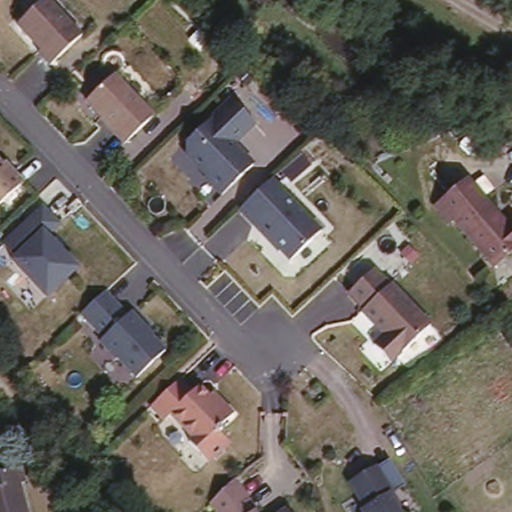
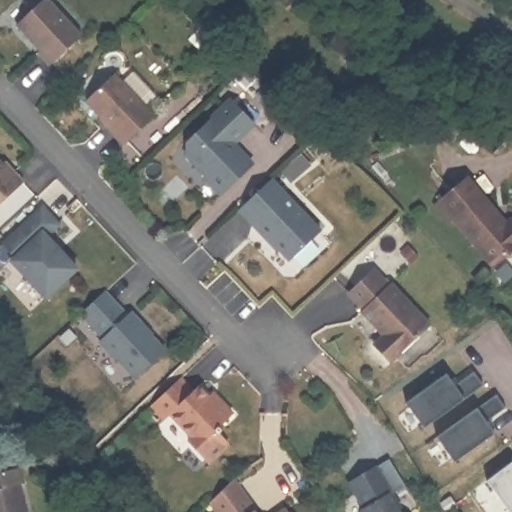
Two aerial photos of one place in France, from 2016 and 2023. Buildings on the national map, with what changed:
unchanged [(19,22),(43,0),(55,0),(85,33),(54,62),(41,49),(44,47),(19,22)]
unchanged [(99,115),(101,114),(85,97),(112,71),(153,114),(124,141),(99,115)]
unchanged [(253,162),(222,192),(203,174),(206,171),(185,150),(185,140),(230,95),(253,120),(232,141),(236,144),(239,148),(253,162)]
unchanged [(12,169),(23,181),(0,203),(0,161),(9,171),(12,169)]
unchanged [(454,221),(440,204),(471,177),(507,219),(512,215),(512,250),(497,263),(458,218),(454,221)]
unchanged [(271,178),(323,232),(291,261),(274,242),(272,244),(240,207),(271,178)]
unchanged [(46,206),(63,223),(51,234),(81,268),(50,298),(15,261),(17,259),(5,244),(46,206)]
unchanged [(376,268),(388,283),(392,281),(431,324),(390,361),(376,341),(386,334),(350,291),(376,268)]
unchanged [(105,289),(129,313),(132,310),(145,324),(144,326),(167,350),(138,378),(120,358),(118,359),(101,341),(104,338),(80,313),(105,289)]
new [(455,385),(475,370),(484,384),(424,427),(406,403),(447,373),(455,385)]
unchanged [(193,391),(198,386),(208,398),(212,394),(221,403),(232,414),(218,428),(221,430),(218,433),(227,442),(206,462),(187,442),(192,438),(171,414),(164,420),(151,406),(180,379),(193,391)]
new [(506,406),(486,421),(494,433),(454,462),(437,438),(496,394),(506,406)]
unchanged [(0,467),(26,459),(41,512),(0,512),(0,467)]
unchanged [(348,485),(392,460),(404,487),(390,496),(400,512),(365,512),(348,485)]
new [(487,481),(511,463),(512,462),(512,512),(511,512),(487,481)]
unchanged [(259,471),(252,475),(248,469),(254,465),(259,471)]
unchanged [(258,508),(256,509),(258,512),(226,512),(212,493),(234,477),(258,508)]
unchanged [(287,506),(292,512),(280,512),(287,506)]

